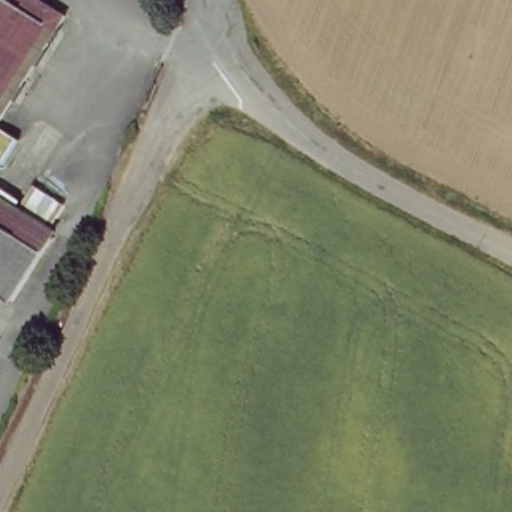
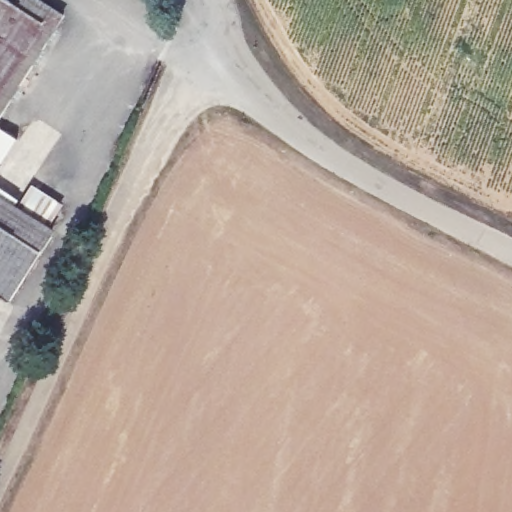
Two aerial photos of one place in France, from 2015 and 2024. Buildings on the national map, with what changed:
unchanged [(0,97),(0,0),(11,0),(45,22),(0,97)]
unchanged [(3,299),(0,297),(0,227),(35,249),(3,299)]

